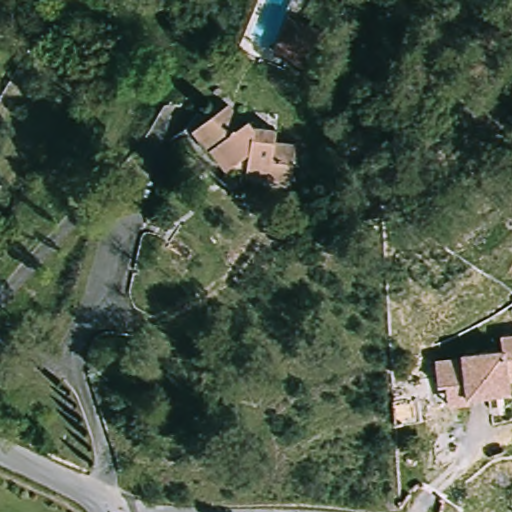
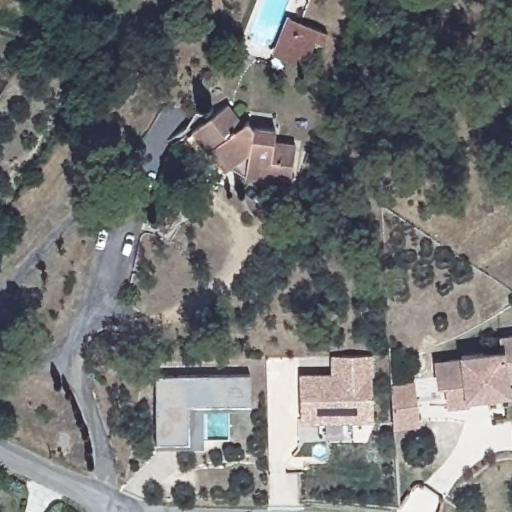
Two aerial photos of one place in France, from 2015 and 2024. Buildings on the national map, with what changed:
unchanged [(316,43),(309,40),(297,67),(279,59),(267,54),(283,17),(302,25),(321,32),(316,43)]
unchanged [(271,132),(269,139),(298,149),(285,189),(241,172),(243,165),(233,172),(217,156),(212,161),(193,138),(225,106),(243,125),(248,120),(258,126),(271,132)]
unchanged [(364,210),(358,232),(337,227),(344,205),(364,210)]
unchanged [(512,335),(512,378),(506,378),(508,391),(467,398),(468,403),(447,406),(444,386),(437,387),(434,363),(460,360),(460,356),(500,350),(498,337),(512,335)]
new [(374,420),(302,422),(301,374),(332,373),(332,355),(373,354),(374,420)]
new [(252,375),(251,409),(204,410),(203,446),(157,446),(157,375),(252,375)]
new [(420,425),(394,428),(391,383),(415,380),(420,425)]

